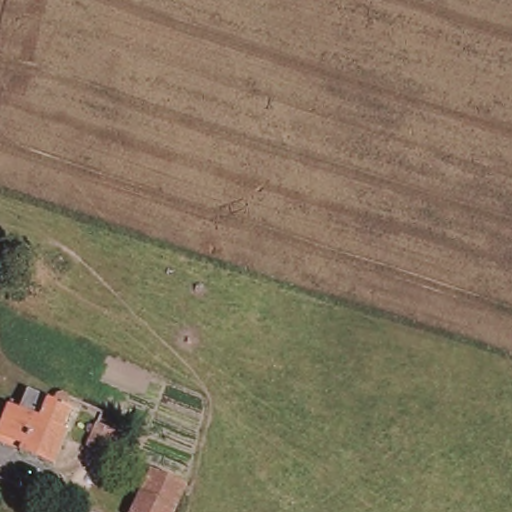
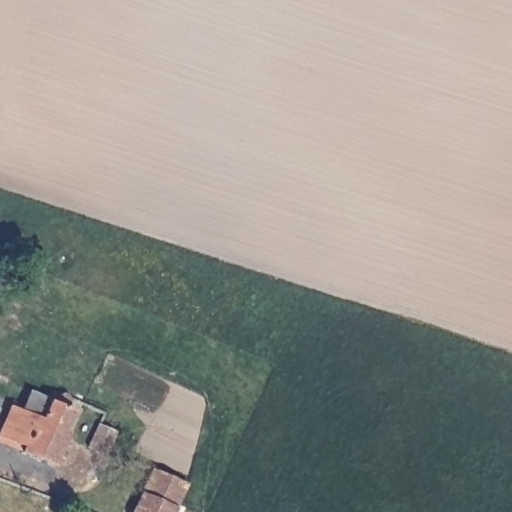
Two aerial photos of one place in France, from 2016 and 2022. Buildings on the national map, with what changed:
unchanged [(18,410),(20,411),(23,404),(29,391),(50,402),(54,397),(54,395),(62,398),(63,399),(64,402),(64,409),(68,411),(65,418),(74,422),(68,438),(60,435),(46,466),(14,453),(18,444),(0,437),(0,423),(9,406),(18,410)]
unchanged [(81,441),(96,409),(105,413),(113,416),(104,432),(96,449),(81,441)]
unchanged [(154,470),(173,478),(182,482),(189,484),(180,506),(179,511),(178,512),(138,512),(154,470)]

